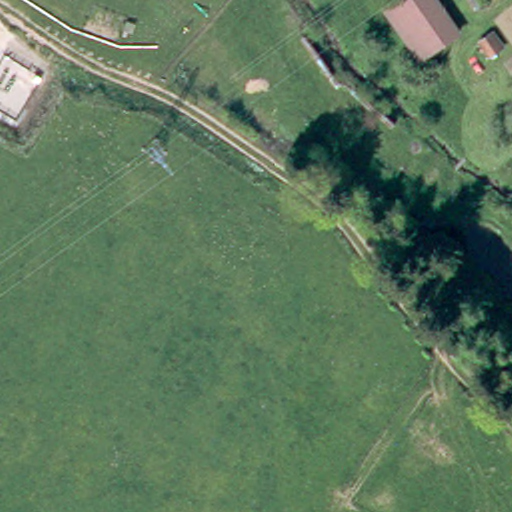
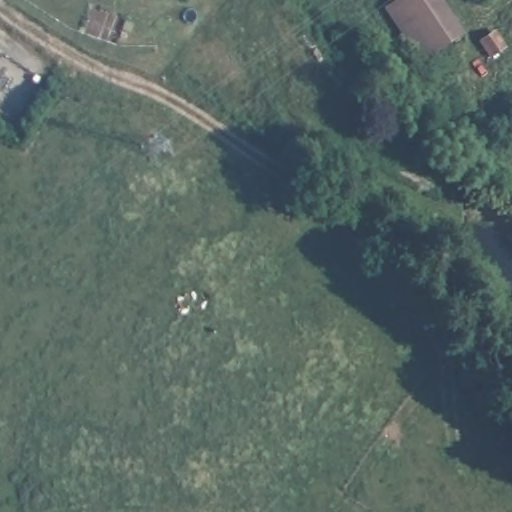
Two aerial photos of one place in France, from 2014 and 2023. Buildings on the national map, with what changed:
unchanged [(442,0),(463,34),(424,60),(392,6),(401,0),(442,0)]

